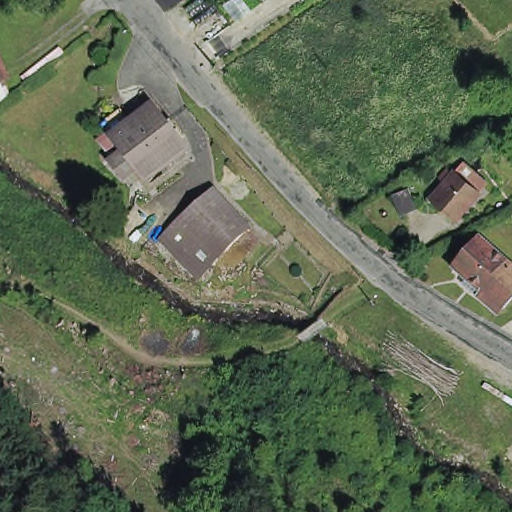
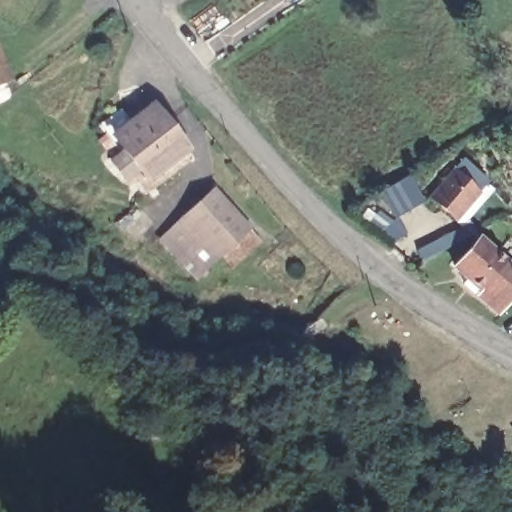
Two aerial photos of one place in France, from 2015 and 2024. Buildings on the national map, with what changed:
unchanged [(0,95),(0,88),(2,94),(0,95)]
unchanged [(144,185),(132,169),(127,172),(133,178),(122,186),(107,167),(122,156),(112,142),(109,145),(97,131),(117,116),(129,130),(150,114),(162,131),(167,127),(175,136),(170,140),(182,156),(144,185)]
unchanged [(454,228),(430,206),(455,180),(479,202),(454,228)]
unchanged [(233,267),(222,256),(219,260),(182,219),(215,190),(252,230),(262,241),(233,267)]
unchanged [(407,212),(391,219),(382,199),(397,192),(407,212)]
unchanged [(201,276),(164,236),(182,219),(219,260),(201,276)]
unchanged [(503,267),(479,295),(451,271),(475,242),(503,267)]
unchanged [(512,274),(512,298),(499,313),(479,295),(503,267),(512,274)]

